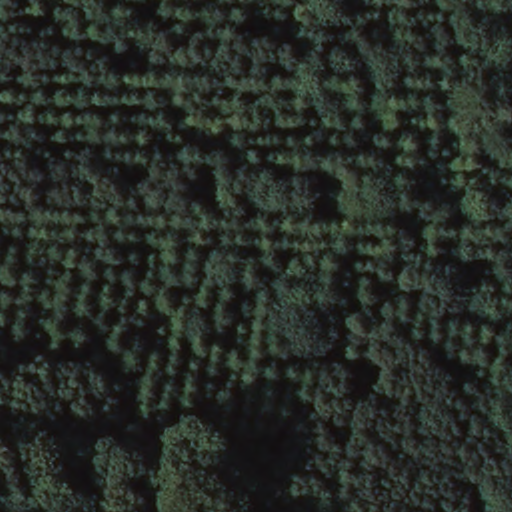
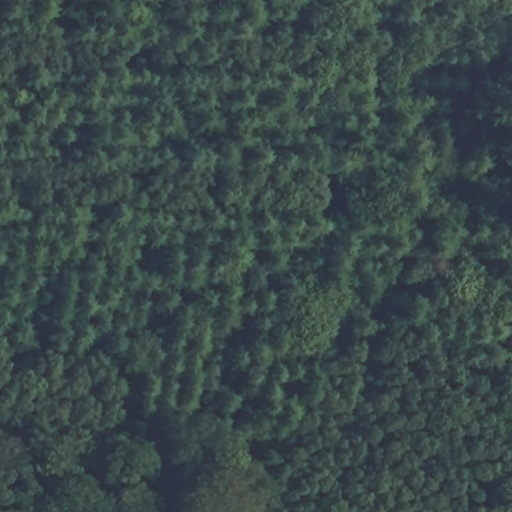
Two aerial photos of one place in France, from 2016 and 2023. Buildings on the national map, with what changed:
[]

